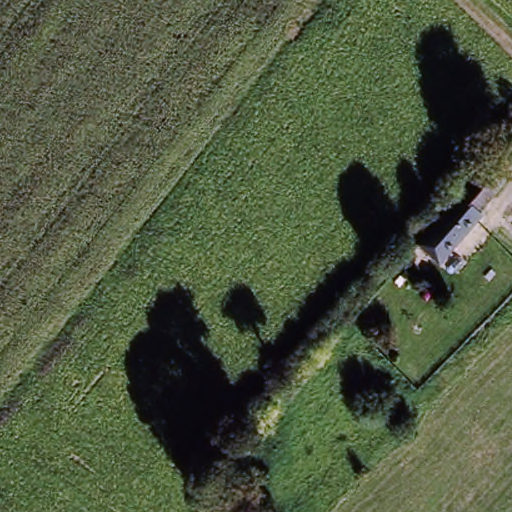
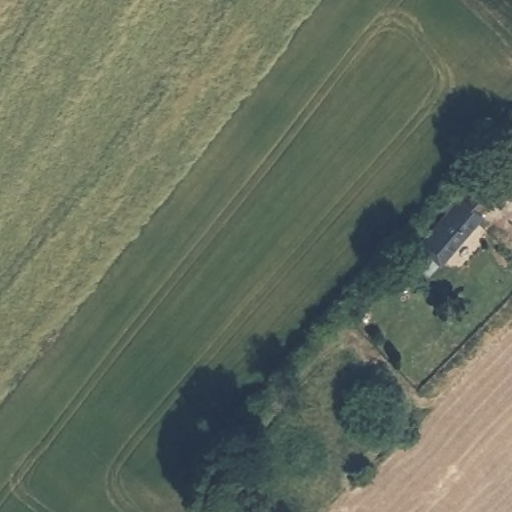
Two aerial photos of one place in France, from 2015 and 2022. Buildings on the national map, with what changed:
unchanged [(507,127),(512,130),(512,159),(500,150),(487,167),(480,161),(507,127)]
unchanged [(482,220),(486,222),(447,271),(421,250),(472,187),(487,167),(500,150),(512,159),(512,182),(509,186),(494,205),(482,220)]

